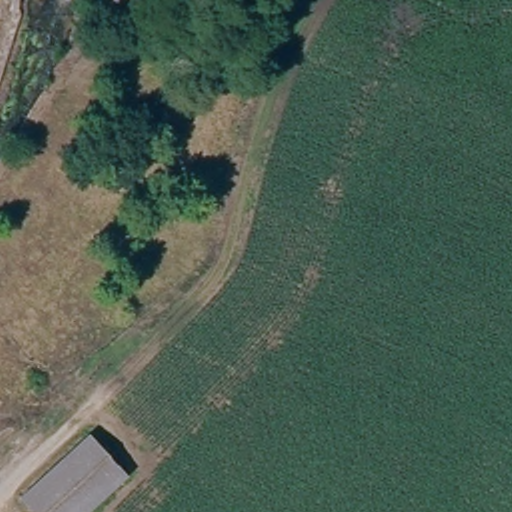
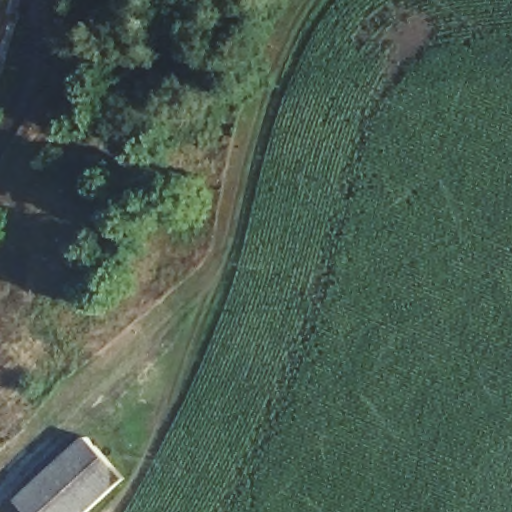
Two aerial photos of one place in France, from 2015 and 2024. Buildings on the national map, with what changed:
unchanged [(18,499),(91,438),(124,477),(82,512),(29,512),(18,499)]

